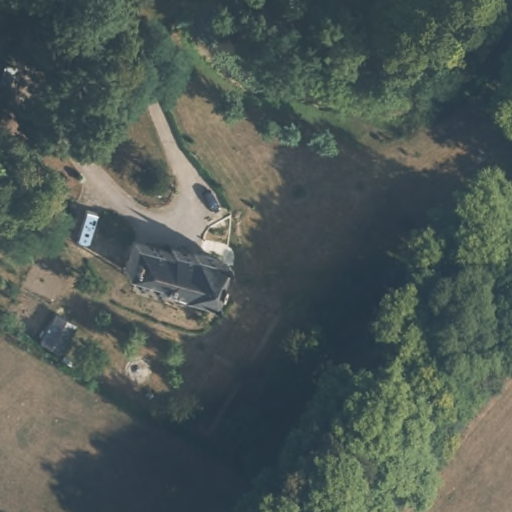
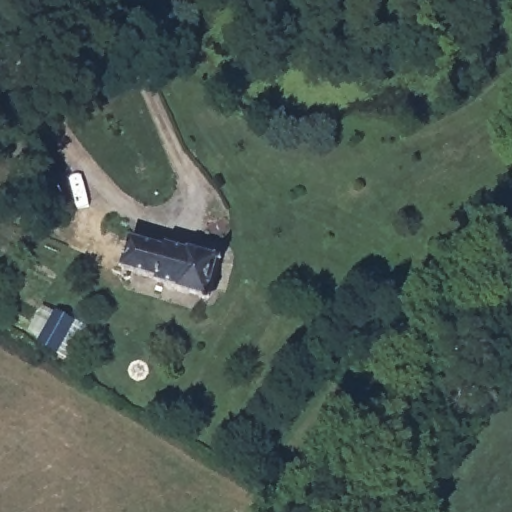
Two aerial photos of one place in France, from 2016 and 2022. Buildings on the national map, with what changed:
unchanged [(170,250),(171,245),(217,258),(208,295),(161,285),(161,279),(121,270),(131,239),(170,250)]

